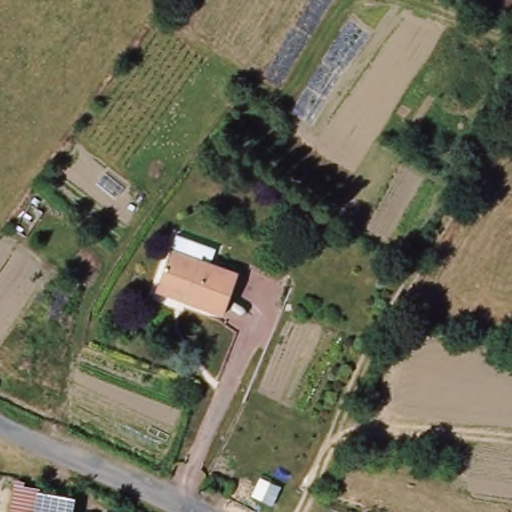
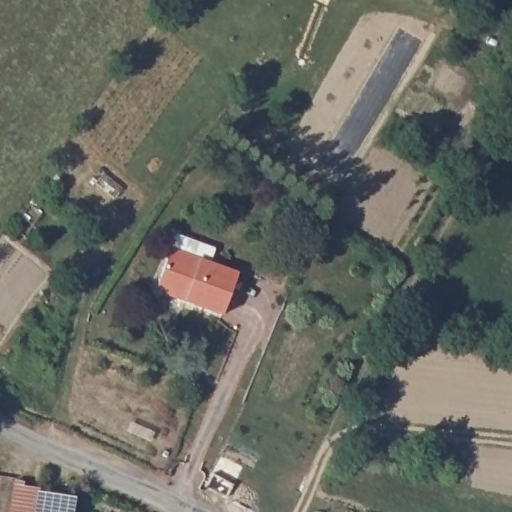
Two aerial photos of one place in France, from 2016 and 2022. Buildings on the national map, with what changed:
unchanged [(170,238),(210,254),(205,268),(232,278),(217,318),(150,294),(170,238)]
unchanged [(215,508),(195,498),(200,485),(222,495),(215,508)]
unchanged [(22,488),(61,497),(74,501),(72,512),(17,512),(21,491),(22,488)]

